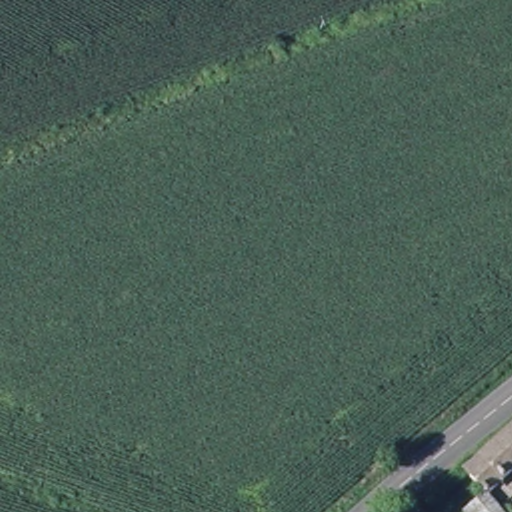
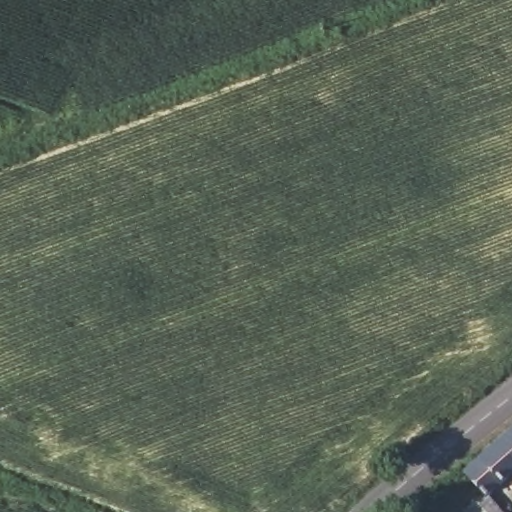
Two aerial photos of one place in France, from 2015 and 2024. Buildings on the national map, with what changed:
unchanged [(468,466),(512,425),(512,475),(493,491),(492,493),(490,490),(468,466)]
unchanged [(492,493),(493,491),(511,512),(467,512),(466,511),(490,490),(492,493)]

